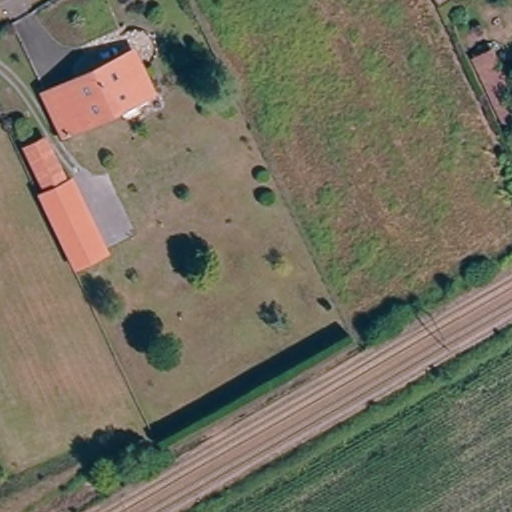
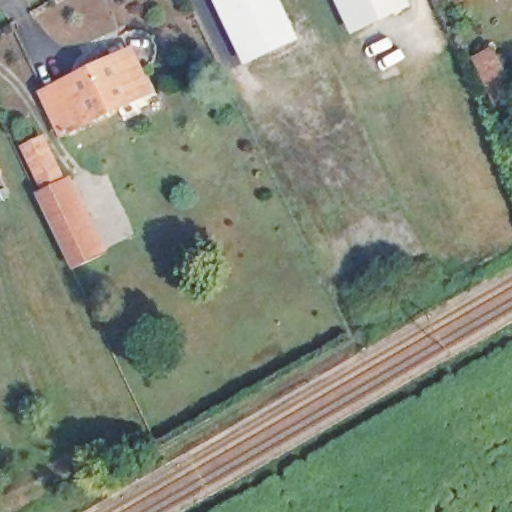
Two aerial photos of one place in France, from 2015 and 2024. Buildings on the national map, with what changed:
new [(246,47),(223,0),(285,0),(296,24),(302,36),(253,60),(246,47)]
new [(345,0),(411,0),(413,4),(359,29),(345,0)]
unchanged [(444,5),(440,0),(450,0),(451,1),(444,5)]
unchanged [(512,111),(512,131),(498,139),(461,65),(484,54),(512,111)]
unchanged [(154,99),(67,139),(49,100),(134,60),(154,99)]
unchanged [(44,139),(65,182),(71,179),(73,182),(98,233),(105,248),(74,263),(68,248),(54,219),(41,194),(50,189),(29,146),(44,139)]
new [(0,175),(0,167),(3,174),(0,175)]

